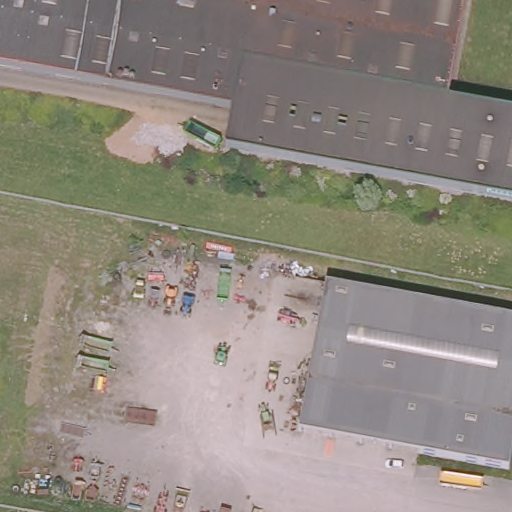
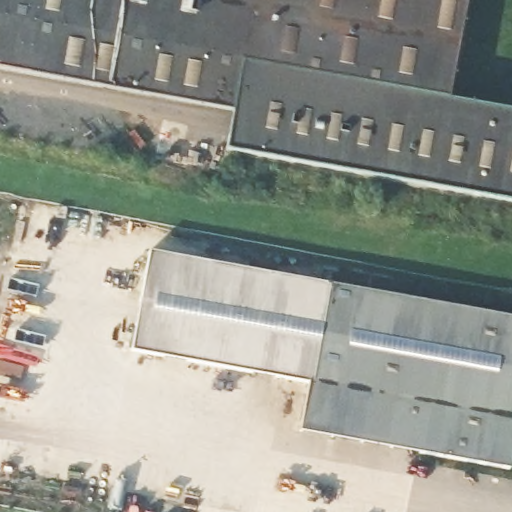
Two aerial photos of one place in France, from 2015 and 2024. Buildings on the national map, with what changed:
unchanged [(448,99),(512,110),(512,203),(225,150),(232,112),(0,69),(0,0),(466,0),(448,99)]
new [(308,382),(133,350),(150,251),(325,283),(308,382)]
unchanged [(512,317),(512,450),(508,469),(299,431),(325,283),(512,317)]

